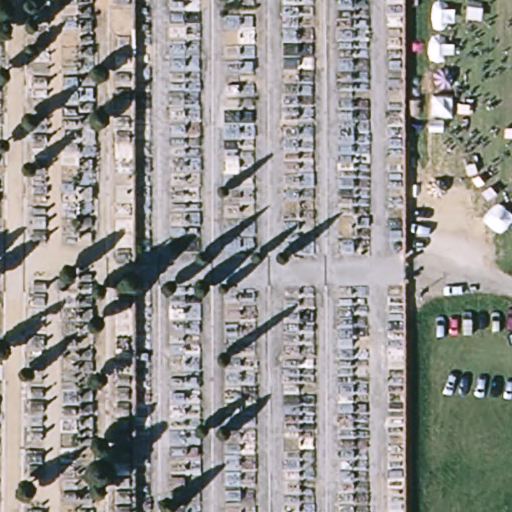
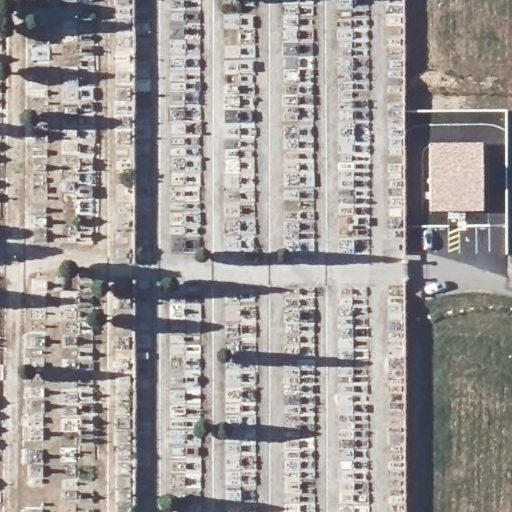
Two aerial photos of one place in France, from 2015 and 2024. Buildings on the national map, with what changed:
new [(483,143),(484,211),(429,213),(429,144),(483,143)]

